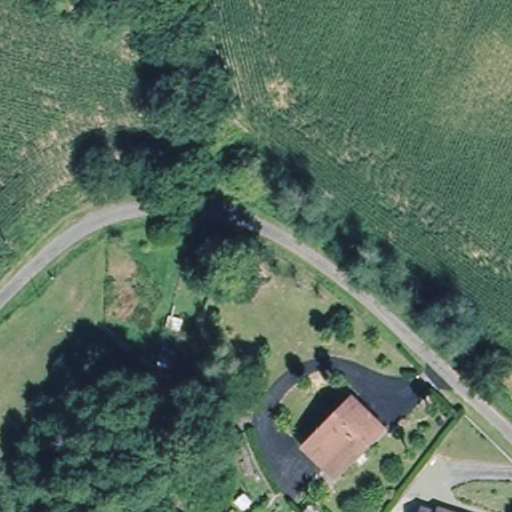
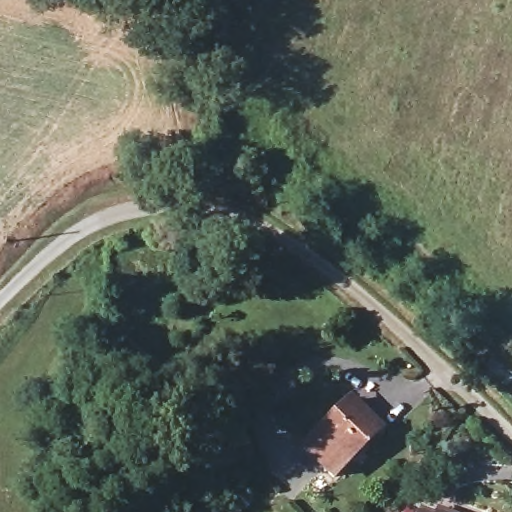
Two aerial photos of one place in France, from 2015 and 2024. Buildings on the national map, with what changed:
unchanged [(335,473),(306,442),(350,394),(380,425),(335,473)]
unchanged [(455,512),(444,512),(445,508),(455,512)]
unchanged [(433,512),(427,512),(427,510),(433,512)]

